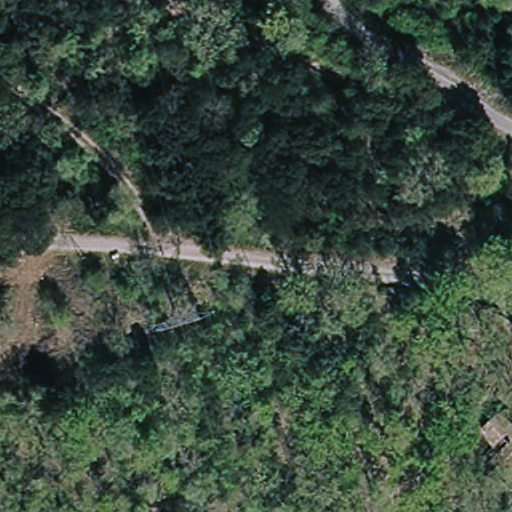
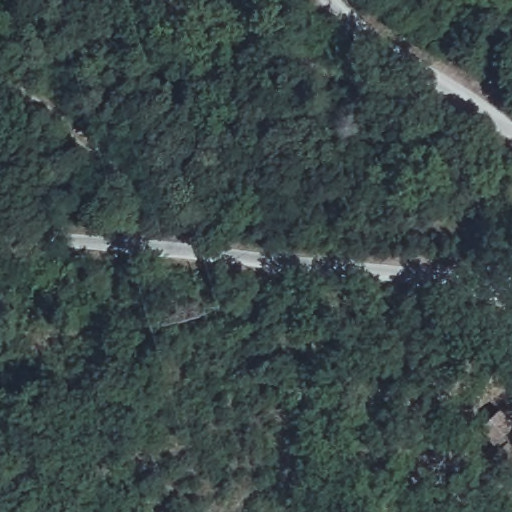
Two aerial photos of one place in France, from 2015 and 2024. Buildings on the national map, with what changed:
unchanged [(512,412),(512,431),(499,444),(484,428),(507,406),(512,412)]

